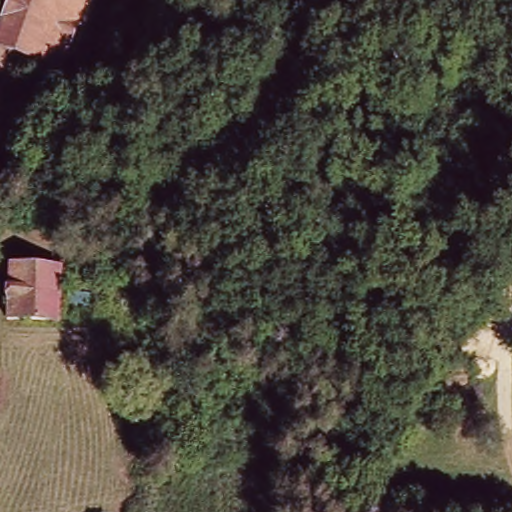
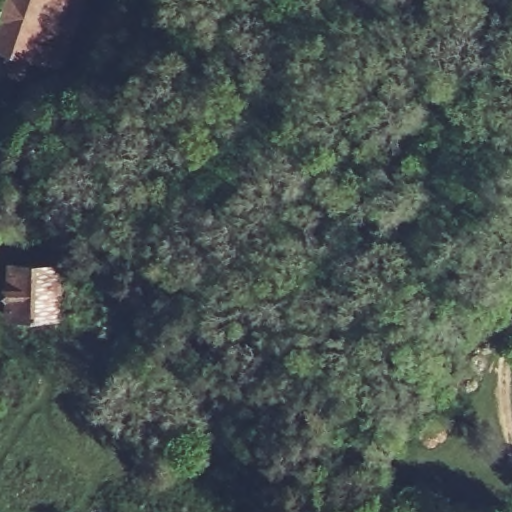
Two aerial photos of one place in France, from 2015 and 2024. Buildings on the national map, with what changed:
unchanged [(0,26),(9,0),(82,0),(60,64),(20,50),(12,76),(0,72),(0,26)]
unchanged [(51,319),(1,316),(4,264),(55,267),(51,319)]
unchanged [(92,309),(61,305),(62,288),(94,290),(92,309)]

